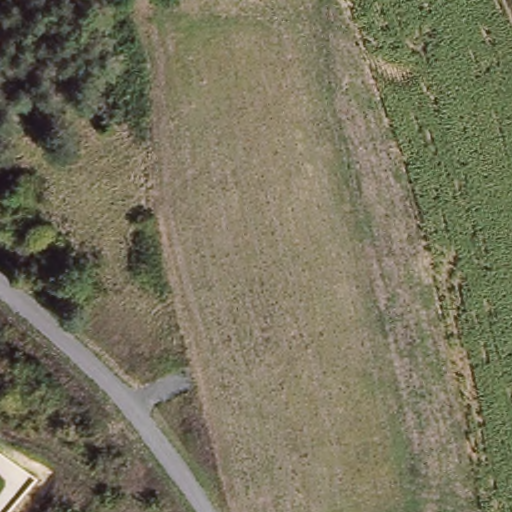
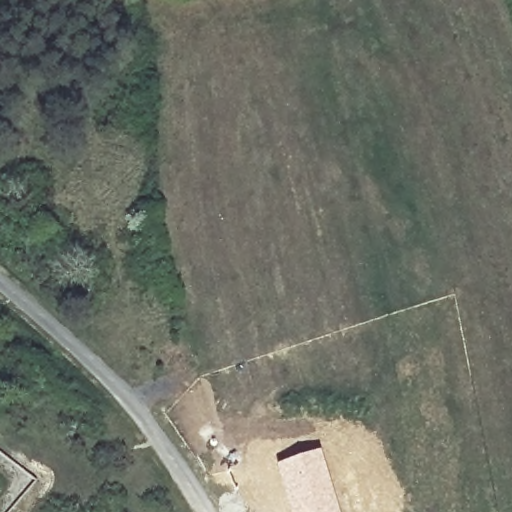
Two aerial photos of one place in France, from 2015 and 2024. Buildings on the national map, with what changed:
new [(318,450),(338,512),(290,512),(274,465),(318,450)]

